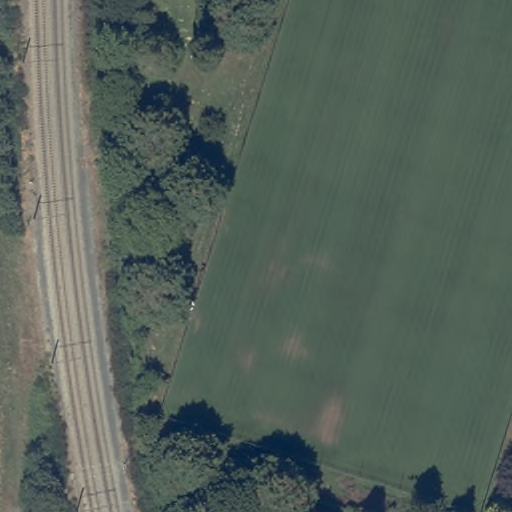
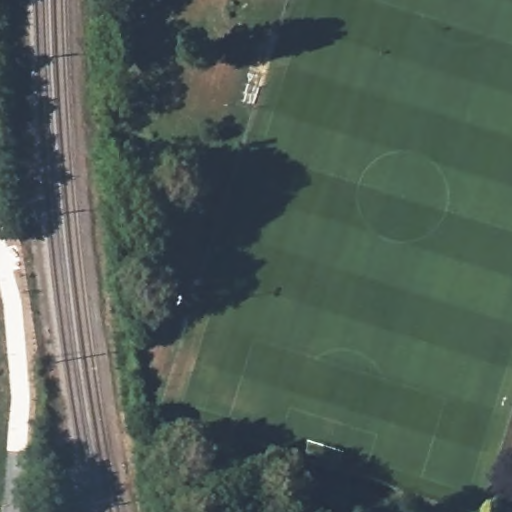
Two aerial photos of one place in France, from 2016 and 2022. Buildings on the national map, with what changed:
[]

